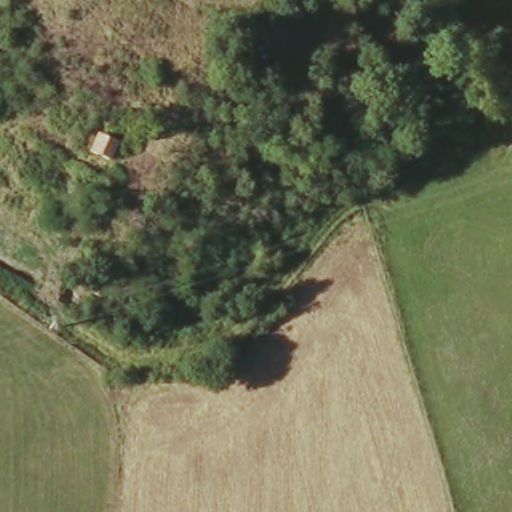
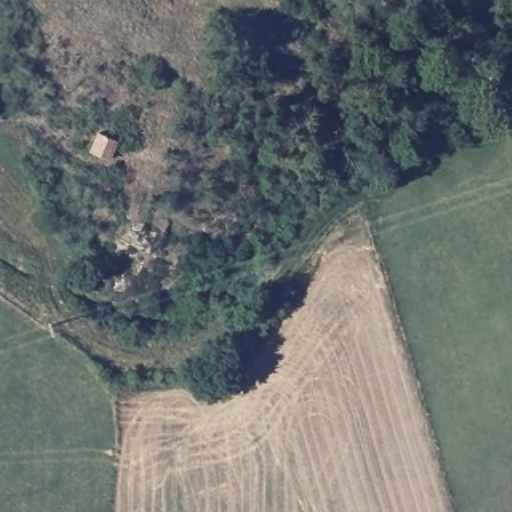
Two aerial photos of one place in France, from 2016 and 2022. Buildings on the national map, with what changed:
unchanged [(97,134),(120,142),(112,162),(90,153),(97,134)]

